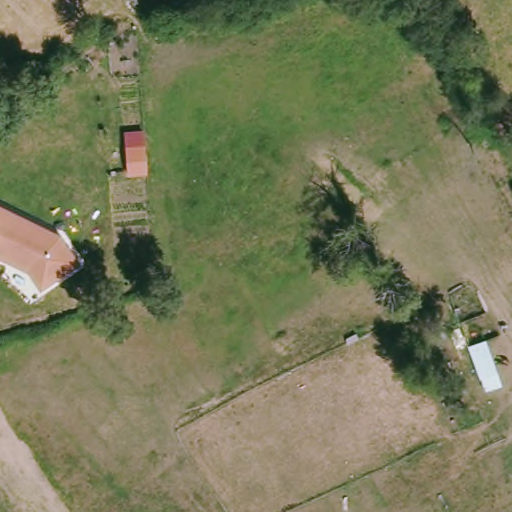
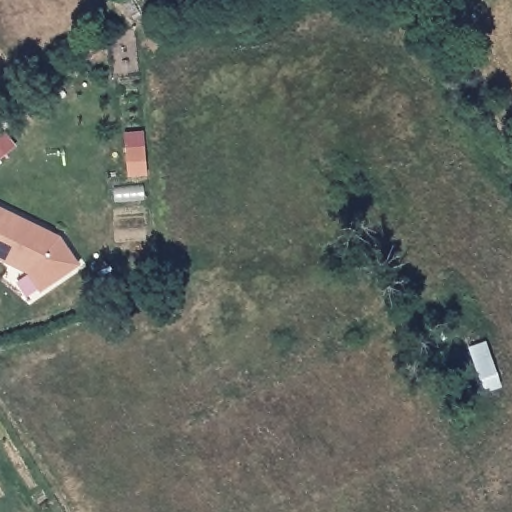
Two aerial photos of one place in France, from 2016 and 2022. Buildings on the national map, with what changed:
unchanged [(128,149),(146,147),(147,159),(148,175),(130,176),(128,149)]
unchanged [(65,237),(83,265),(46,289),(35,272),(0,255),(0,205),(65,237)]

